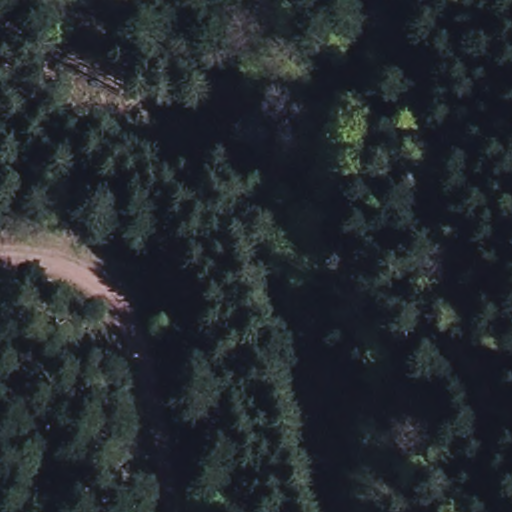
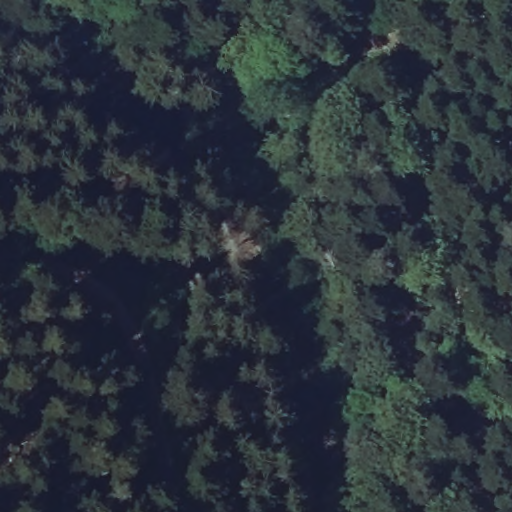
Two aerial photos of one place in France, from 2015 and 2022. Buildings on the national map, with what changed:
[]

